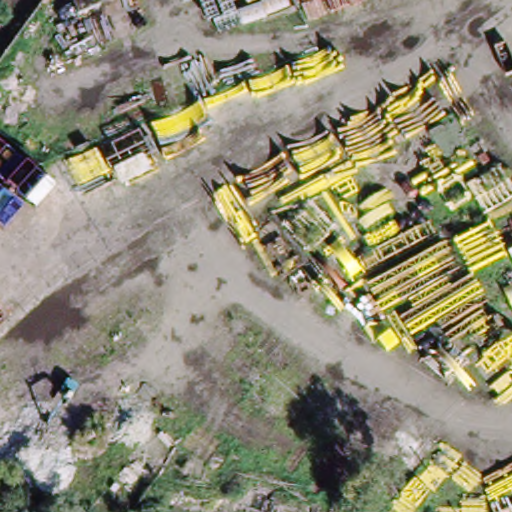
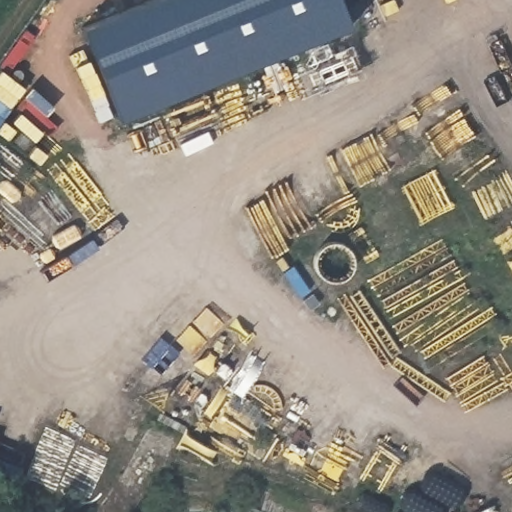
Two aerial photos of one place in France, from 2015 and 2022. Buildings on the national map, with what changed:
demolished [(102,5),(84,12),(80,0),(100,0),(102,5)]
new [(351,25),(119,119),(82,27),(150,0),(340,0),(351,25)]

